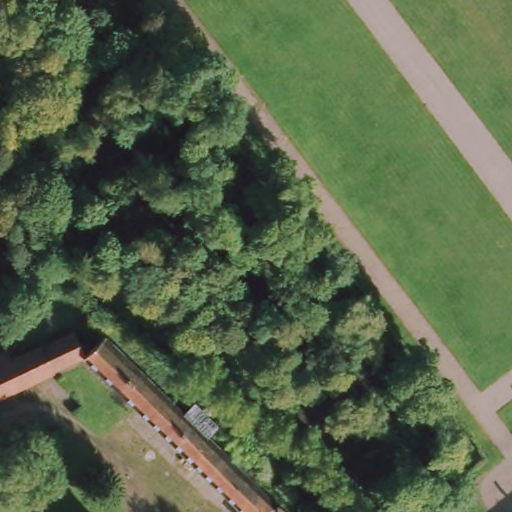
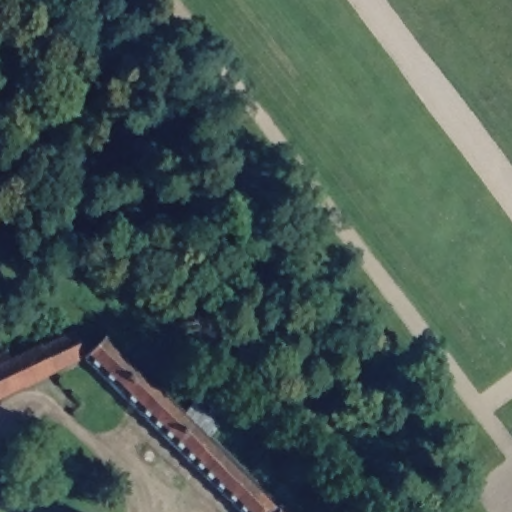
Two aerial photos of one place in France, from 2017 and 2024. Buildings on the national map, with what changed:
unchanged [(50,366),(39,341),(72,326),(78,343),(85,338),(90,343),(82,351),(50,366)]
unchanged [(83,352),(82,351),(90,343),(103,330),(185,412),(197,401),(220,424),(208,435),(287,512),(239,512),(83,352)]
unchanged [(0,347),(34,331),(39,341),(50,366),(0,391),(0,347)]

